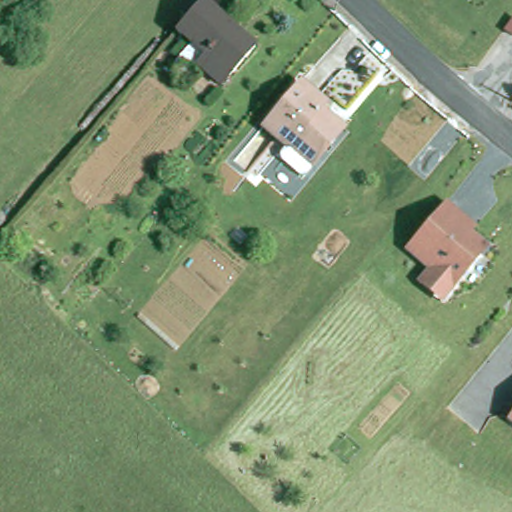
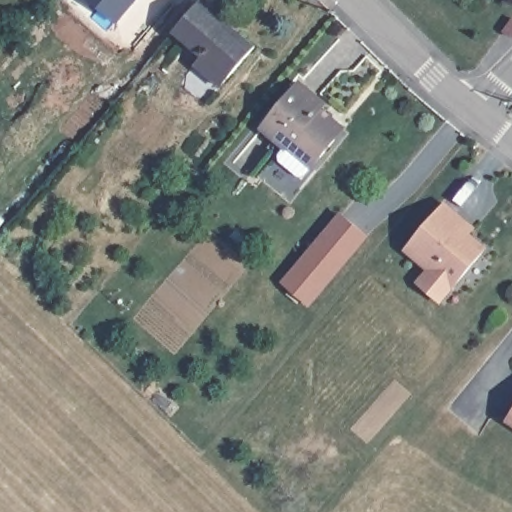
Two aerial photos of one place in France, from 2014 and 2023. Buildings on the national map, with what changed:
new [(91,0),(135,0),(115,23),(91,0)]
unchanged [(197,66),(205,58),(177,32),(203,2),(205,0),(224,0),(230,5),(220,16),(256,48),(222,88),(197,66)]
unchanged [(263,132),(300,88),(327,110),(350,130),(337,145),(322,163),(312,174),(297,161),(263,132)]
unchanged [(475,219),(470,231),(488,243),(447,300),(420,285),(430,264),(410,249),(443,200),(475,219)]
new [(369,235),(311,305),(280,282),(339,210),(369,235)]

